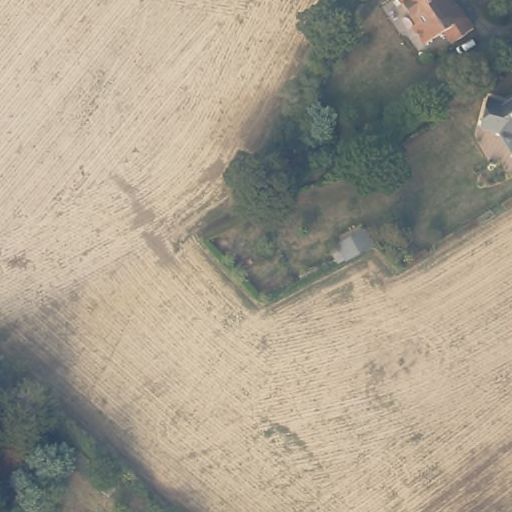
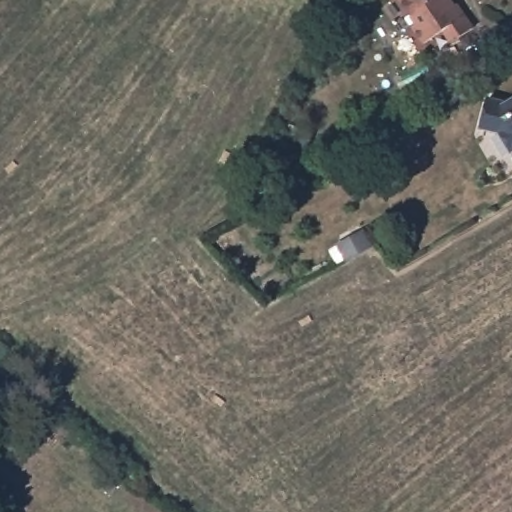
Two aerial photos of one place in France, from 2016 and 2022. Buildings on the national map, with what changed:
unchanged [(449,25),(430,38),(418,20),(422,17),(410,0),(460,0),(463,0),(478,23),(462,34),(457,37),(449,25)]
unchanged [(505,136),(486,132),(493,102),(512,106),(512,149),(505,136)]
unchanged [(373,246),(355,255),(346,260),(338,245),(365,231),(373,246)]
unchanged [(0,405),(0,388),(9,395),(0,405)]
unchanged [(117,488),(110,497),(96,486),(104,477),(117,488)]

